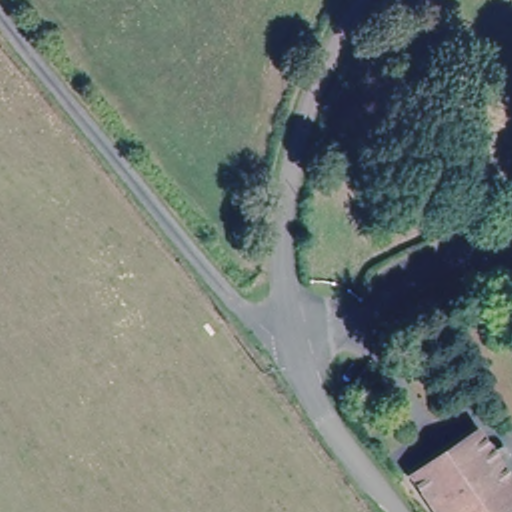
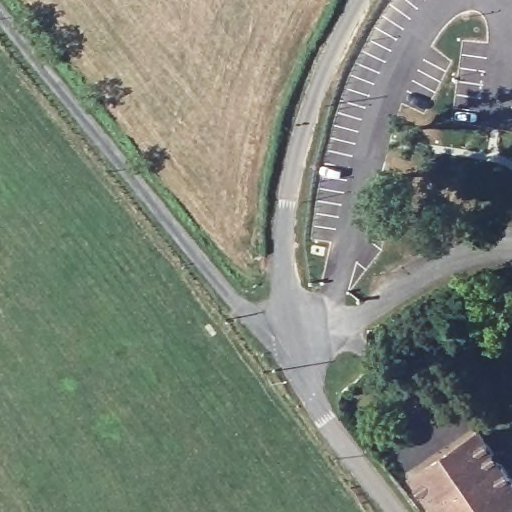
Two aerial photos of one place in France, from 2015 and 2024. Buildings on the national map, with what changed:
unchanged [(512,471),(512,497),(493,512),(445,512),(412,471),(477,427),(512,471)]

